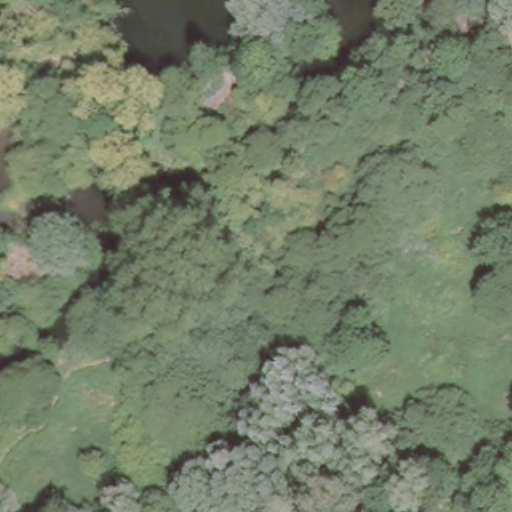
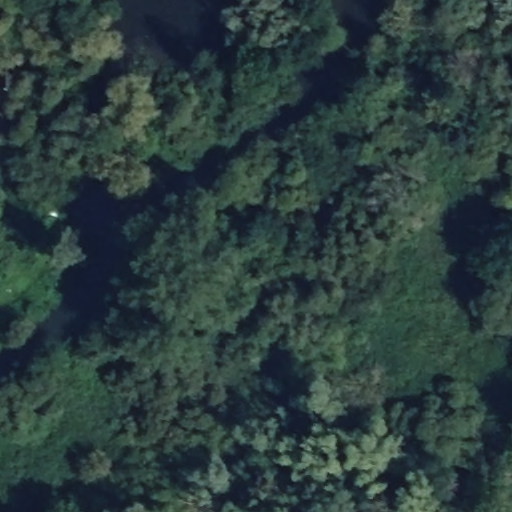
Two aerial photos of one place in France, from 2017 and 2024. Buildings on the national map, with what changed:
unchanged [(273,69),(265,60),(275,53),(282,61),(273,69)]
unchanged [(222,145),(212,154),(200,140),(210,130),(222,145)]

